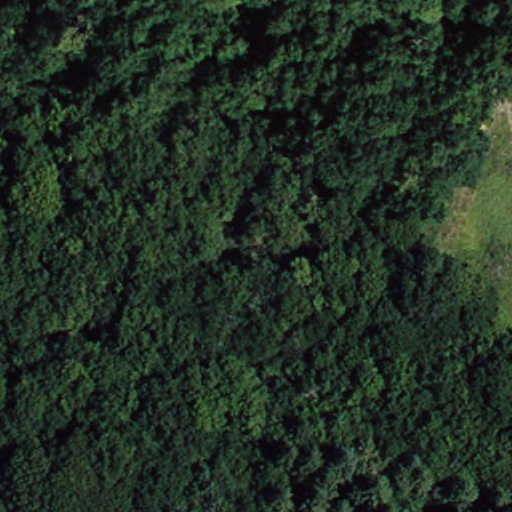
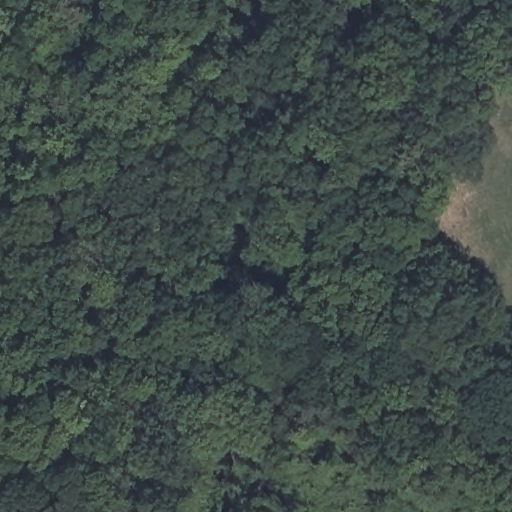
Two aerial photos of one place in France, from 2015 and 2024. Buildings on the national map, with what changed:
[]

